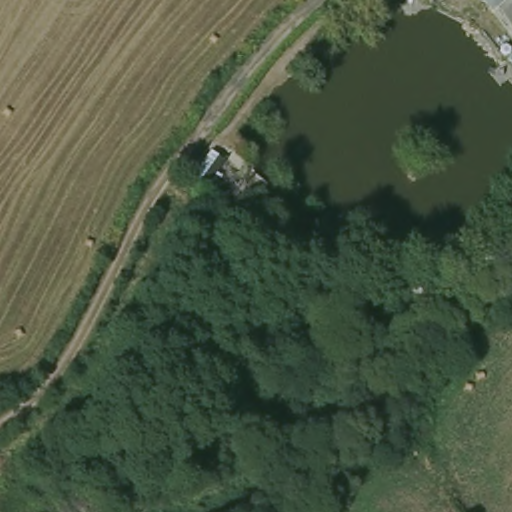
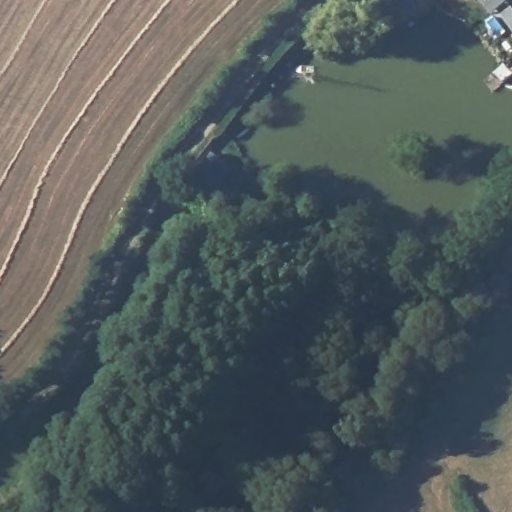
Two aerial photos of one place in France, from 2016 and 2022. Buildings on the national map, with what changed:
unchanged [(481,8),(474,0),(512,0),(512,28),(496,10),(488,16),(481,8)]

